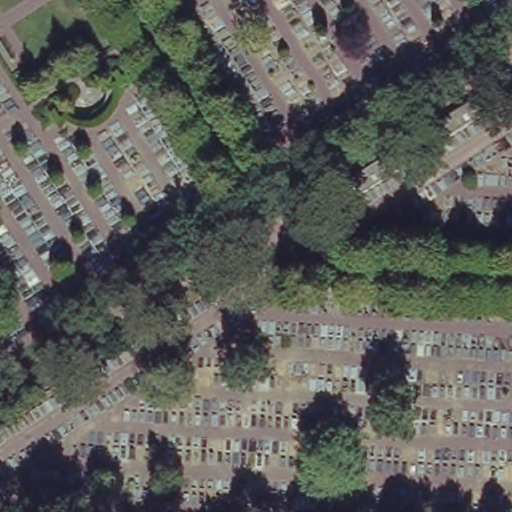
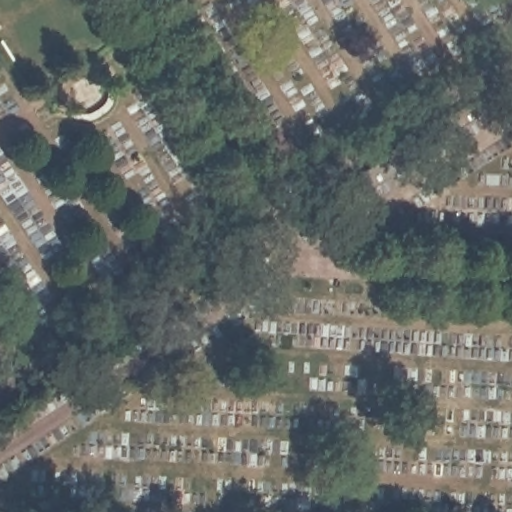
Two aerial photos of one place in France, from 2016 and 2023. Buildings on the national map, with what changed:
unchanged [(428,126),(493,83),(503,98),(438,141),(428,126)]
unchanged [(352,177),(411,138),(421,152),(361,192),(352,177)]

